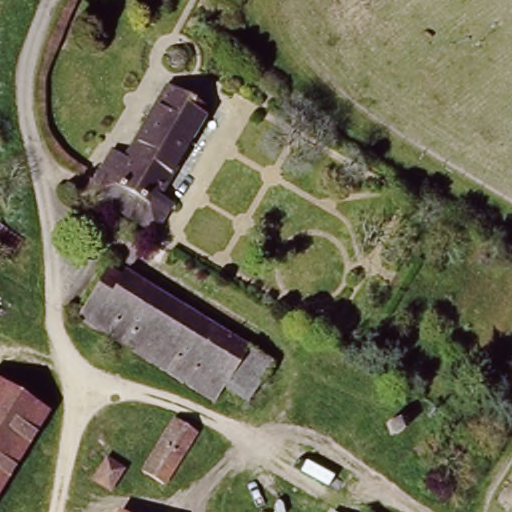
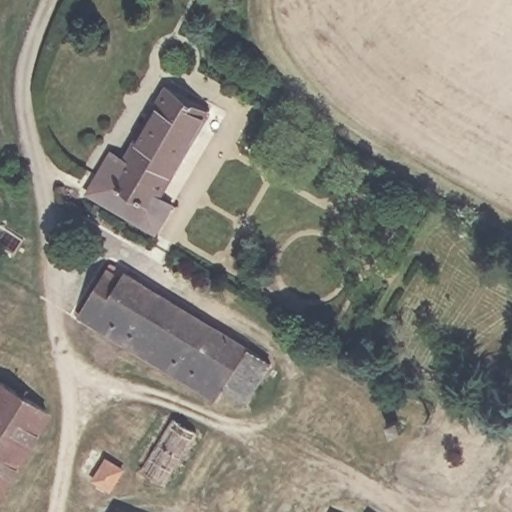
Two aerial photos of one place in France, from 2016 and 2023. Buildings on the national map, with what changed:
unchanged [(100,173),(113,153),(121,158),(136,138),(159,105),(165,99),(171,98),(179,100),(184,105),(186,111),(186,116),(194,122),(191,128),(143,200),(167,216),(154,235),(131,219),(99,197),(88,190),(100,173)]
unchanged [(241,406),(219,393),(216,399),(73,314),(105,261),(248,346),(238,362),(261,375),(241,406)]
unchanged [(36,412),(0,474),(0,390),(36,412)]
unchanged [(192,436),(163,484),(136,469),(166,419),(192,436)]
unchanged [(124,474),(120,481),(111,497),(91,485),(100,469),(104,462),(124,474)]

